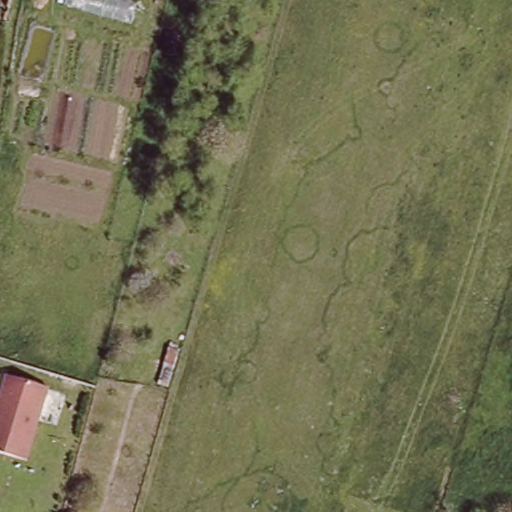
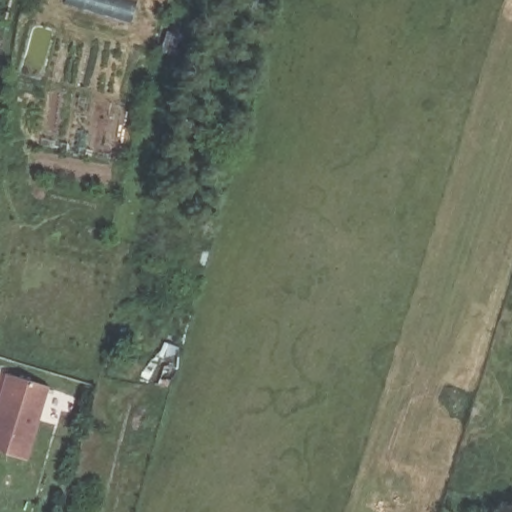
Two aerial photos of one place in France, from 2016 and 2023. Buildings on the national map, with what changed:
unchanged [(25,459),(0,451),(0,379),(1,375),(47,386),(25,459)]

